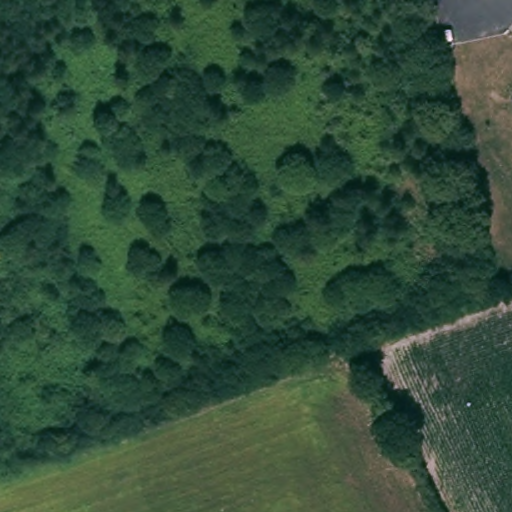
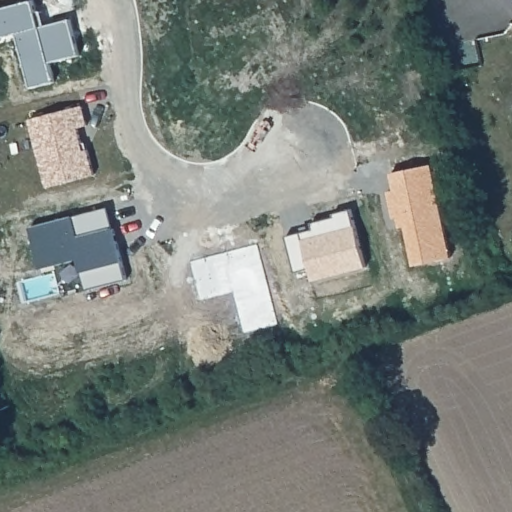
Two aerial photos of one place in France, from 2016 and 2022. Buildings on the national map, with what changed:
new [(34,13),(39,12),(43,27),(68,21),(77,56),(48,63),(52,81),(27,88),(14,33),(0,37),(0,9),(31,1),(34,13)]
new [(82,107),(87,125),(77,128),(83,150),(87,149),(93,174),(45,185),(31,118),(82,107)]
new [(408,253),(402,228),(395,229),(393,219),(390,220),(385,195),(391,193),(388,176),(428,168),(448,260),(426,265),(410,268),(408,253)]
new [(40,264),(30,225),(104,206),(106,206),(112,226),(125,279),(86,289),(78,258),(57,263),(41,268),(40,264)]
new [(312,230),(310,224),(332,218),(331,215),(349,210),(365,268),(312,281),(309,269),(294,273),(285,237),(312,230)]

